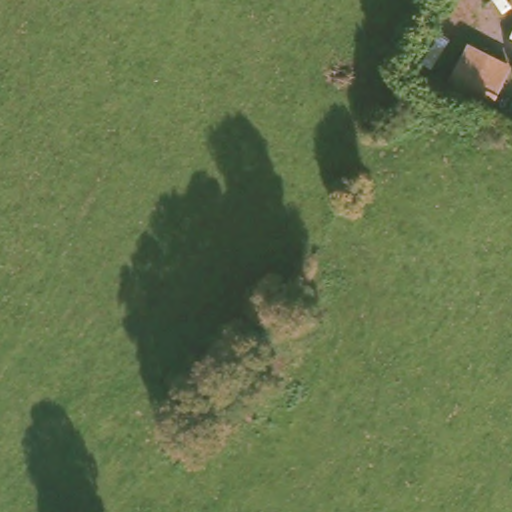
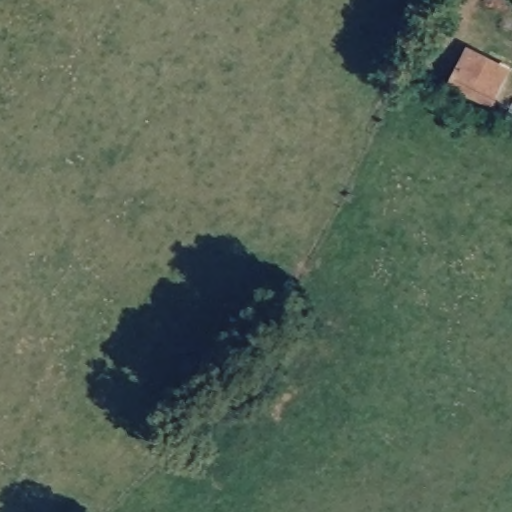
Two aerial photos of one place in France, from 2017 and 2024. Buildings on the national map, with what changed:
unchanged [(444,0),(451,0),(458,3),(446,26),(434,20),(444,0)]
unchanged [(512,67),(491,108),(446,86),(467,45),(512,67)]

